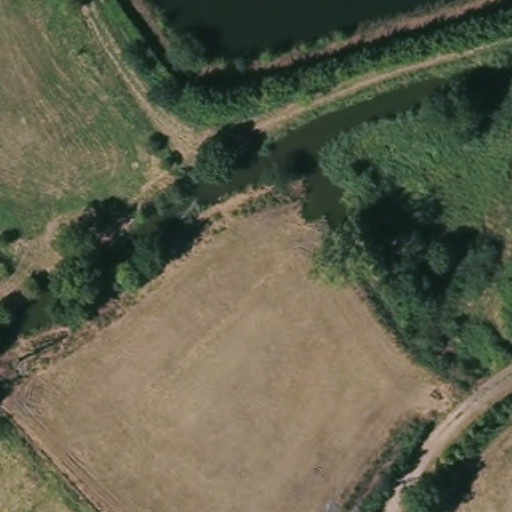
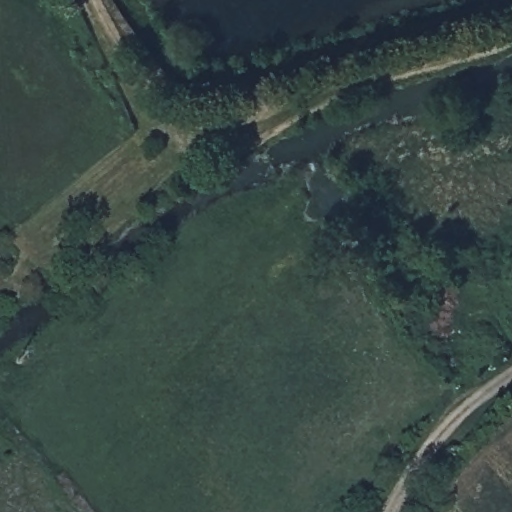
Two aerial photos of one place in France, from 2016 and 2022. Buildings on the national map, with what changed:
[]

